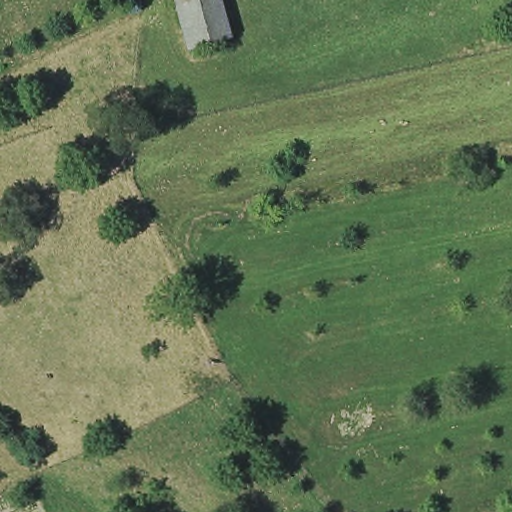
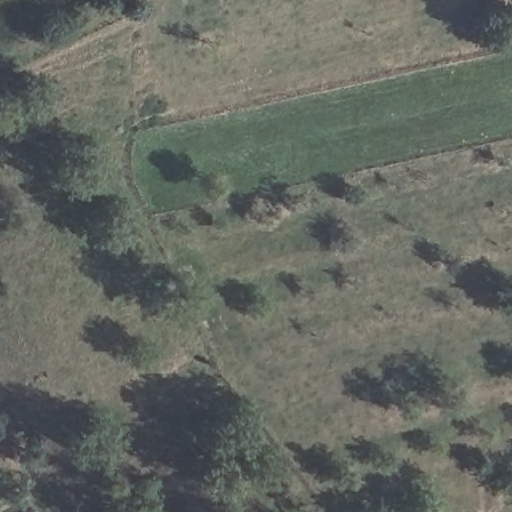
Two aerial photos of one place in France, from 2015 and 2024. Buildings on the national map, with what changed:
demolished [(222,0),(231,37),(184,47),(171,0),(222,0)]

